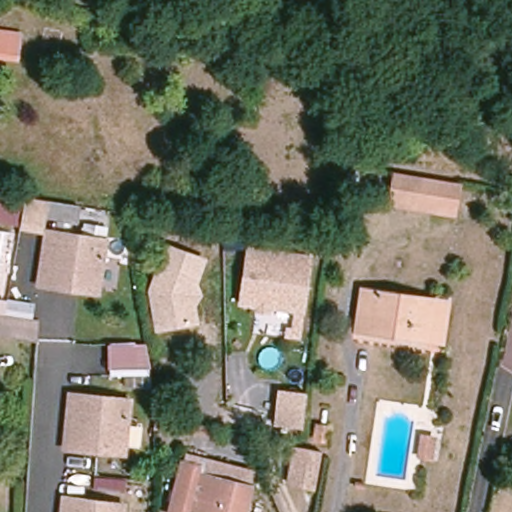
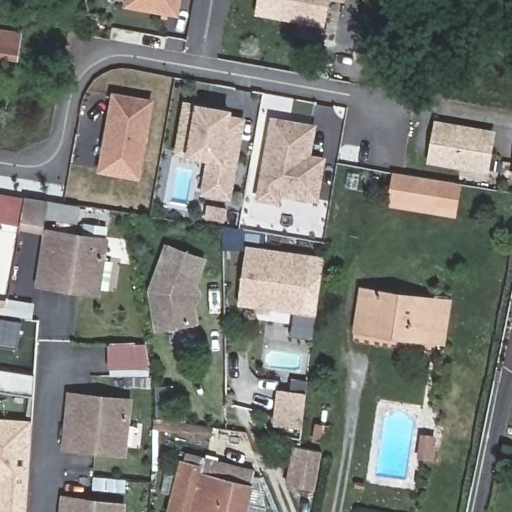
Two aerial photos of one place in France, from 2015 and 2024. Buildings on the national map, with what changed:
new [(124,7),(125,0),(175,0),(172,15),(124,7)]
new [(260,0),(327,0),(323,25),(258,12),(260,0)]
unchanged [(26,35),(22,61),(0,57),(0,31),(26,35)]
new [(140,179),(98,172),(112,92),(155,99),(140,179)]
new [(182,100),(196,103),(232,109),(231,114),(245,117),(231,200),(201,195),(206,161),(187,157),(175,154),(182,100)]
new [(257,199),(270,116),(317,123),(312,154),(326,156),(318,201),(282,196),(281,202),(257,199)]
new [(432,126),(488,135),(482,172),(426,162),(432,126)]
new [(512,178),(511,177),(512,170),(512,178)]
unchanged [(451,217),(387,207),(392,175),(453,185),(457,186),(451,217)]
unchanged [(44,220),(40,227),(39,235),(20,232),(20,224),(0,222),(0,195),(79,206),(77,222),(44,220)]
unchanged [(77,234),(78,228),(107,232),(95,295),(32,282),(39,235),(40,227),(77,234)]
unchanged [(198,282),(204,296),(195,304),(199,325),(153,333),(146,285),(166,241),(208,257),(198,282)]
unchanged [(236,306),(244,245),(312,254),(305,316),(236,306)]
unchanged [(412,338),(413,332),(378,327),(377,332),(357,330),(363,291),(449,302),(443,342),(412,338)]
unchanged [(7,304),(5,315),(40,320),(37,340),(0,334),(0,303),(7,304)]
unchanged [(149,371),(108,369),(108,345),(145,346),(149,371)]
unchanged [(302,430),(273,427),(277,388),(307,391),(302,430)]
unchanged [(66,408),(62,407),(65,392),(124,402),(114,456),(59,446),(66,408)]
new [(26,512),(0,512),(0,492),(1,482),(0,481),(0,417),(32,418),(26,512)]
unchanged [(316,423),(331,426),(327,444),(312,442),(316,423)]
unchanged [(432,458),(421,457),(423,437),(435,439),(432,458)]
unchanged [(316,490),(288,484),(295,448),(322,453),(316,490)]
unchanged [(205,472),(207,465),(191,461),(192,452),(254,468),(252,485),(205,472)]
unchanged [(252,487),(245,512),(193,512),(171,512),(183,463),(204,468),(202,475),(252,487)]
unchanged [(64,511),(59,510),(62,494),(121,505),(120,512),(63,512),(64,511)]

